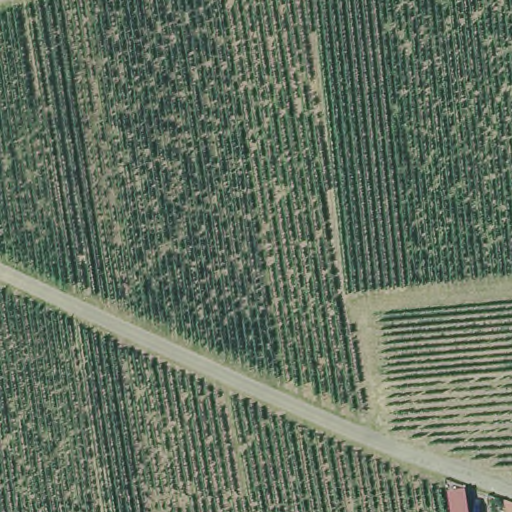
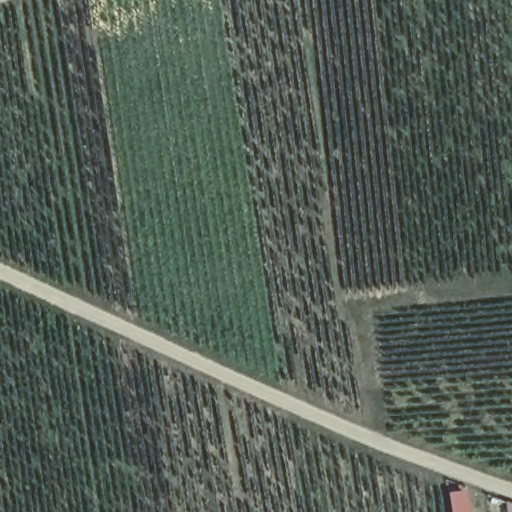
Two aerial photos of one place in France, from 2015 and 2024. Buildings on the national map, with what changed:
unchanged [(508,498),(512,499),(512,512),(510,512),(508,498)]

